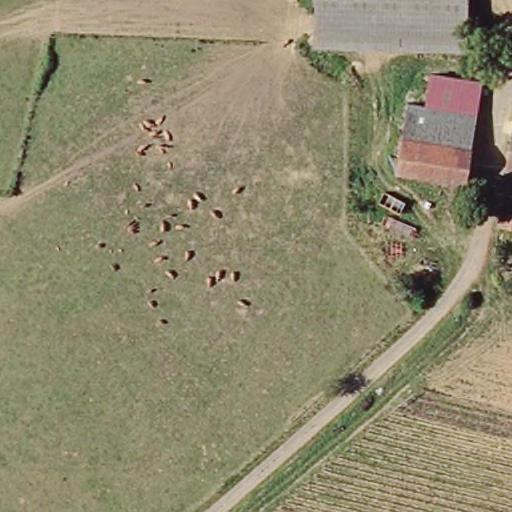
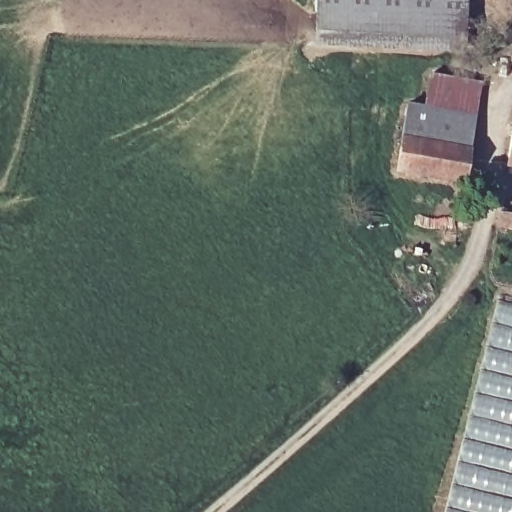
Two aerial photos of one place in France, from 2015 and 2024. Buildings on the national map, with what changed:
unchanged [(459,54),(310,42),(314,0),(463,0),(459,54)]
unchanged [(472,148),(403,140),(406,105),(426,107),(429,76),(479,83),(475,112),(472,148)]
unchanged [(468,180),(400,173),(403,140),(472,148),(468,180)]
new [(512,304),(512,326),(492,321),(497,300),(512,304)]
new [(512,326),(512,352),(486,345),(492,321),(512,326)]
new [(512,352),(512,376),(480,368),(486,345),(512,352)]
new [(512,376),(512,449),(462,436),(480,368),(512,376)]
new [(512,449),(512,512),(444,512),(462,436),(512,449)]

